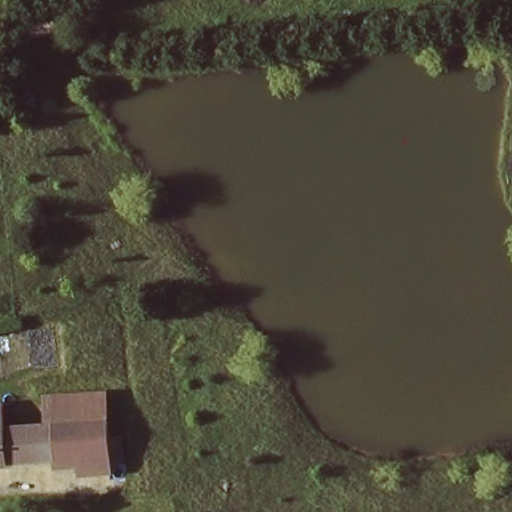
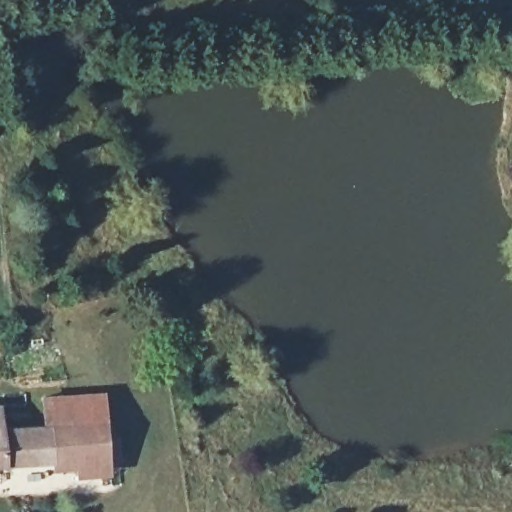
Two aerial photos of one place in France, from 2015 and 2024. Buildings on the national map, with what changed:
unchanged [(40,401),(101,396),(104,423),(51,428),(42,429),(40,401)]
unchanged [(118,461),(107,462),(106,464),(78,467),(77,460),(0,467),(0,433),(42,429),(51,428),(104,423),(105,440),(116,439),(118,461)]

